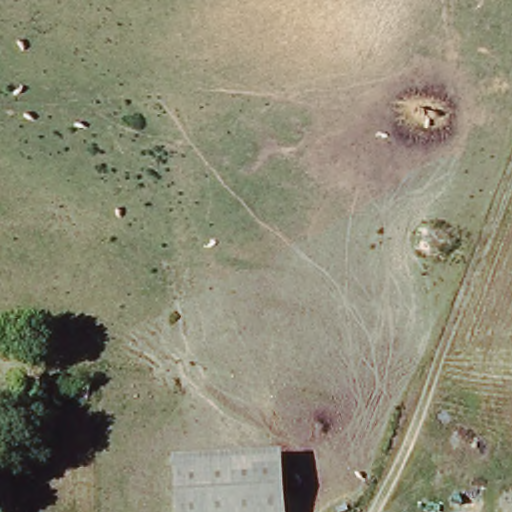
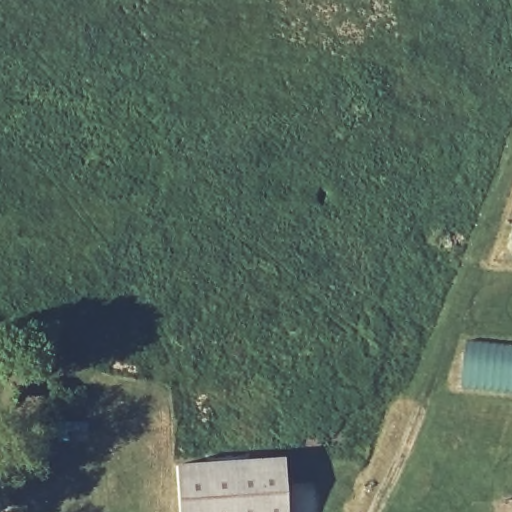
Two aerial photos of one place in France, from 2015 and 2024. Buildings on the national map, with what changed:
new [(512,349),(512,388),(463,383),(467,344),(512,349)]
unchanged [(286,512),(181,512),(181,470),(285,469),(286,512)]

